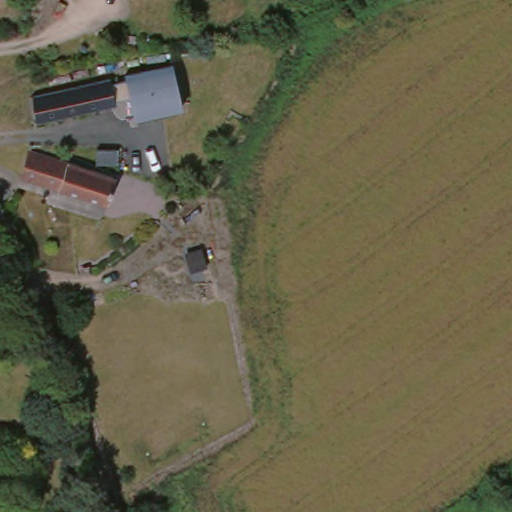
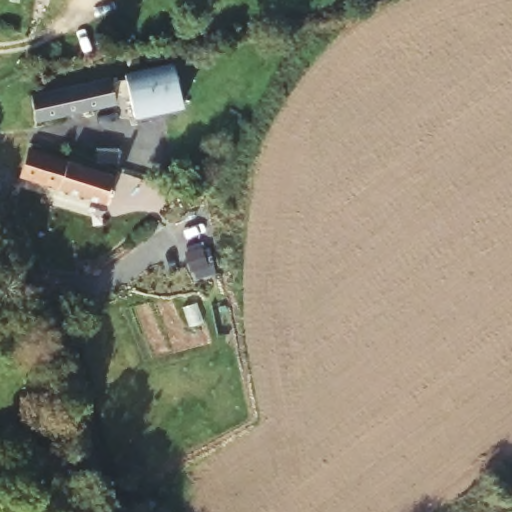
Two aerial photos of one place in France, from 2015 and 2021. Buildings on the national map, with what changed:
unchanged [(187,62),(192,86),(160,92),(164,107),(134,114),(132,102),(35,124),(29,97),(187,62)]
unchanged [(32,145),(73,160),(62,189),(24,178),(32,145)]
unchanged [(121,176),(112,203),(62,189),(73,160),(121,176)]

